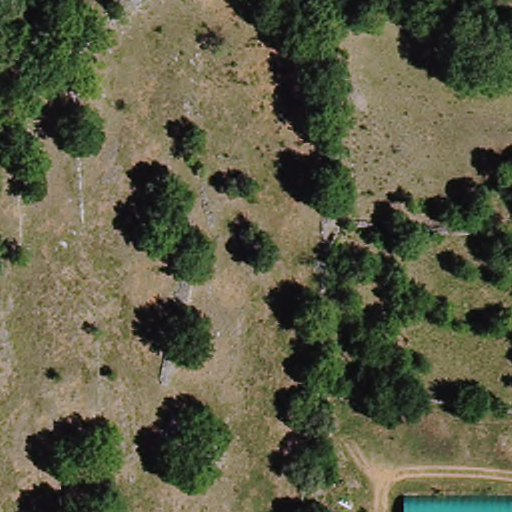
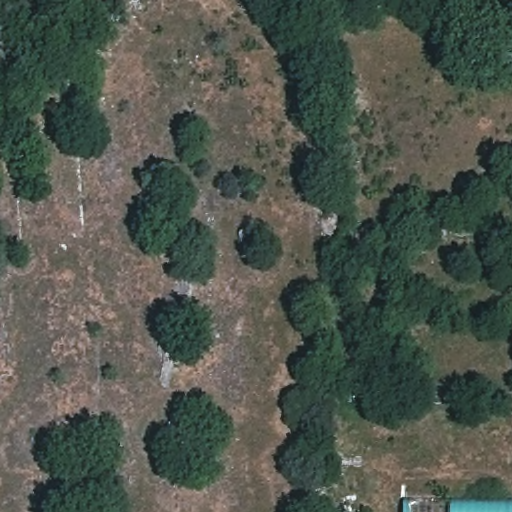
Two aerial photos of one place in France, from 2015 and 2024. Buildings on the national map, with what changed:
unchanged [(399,512),(399,507),(512,504),(512,512),(399,512)]

